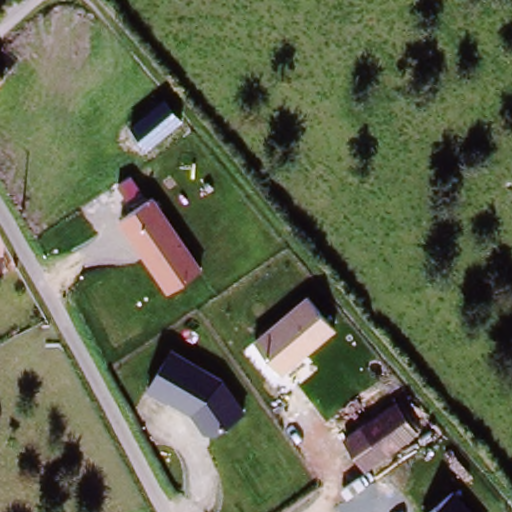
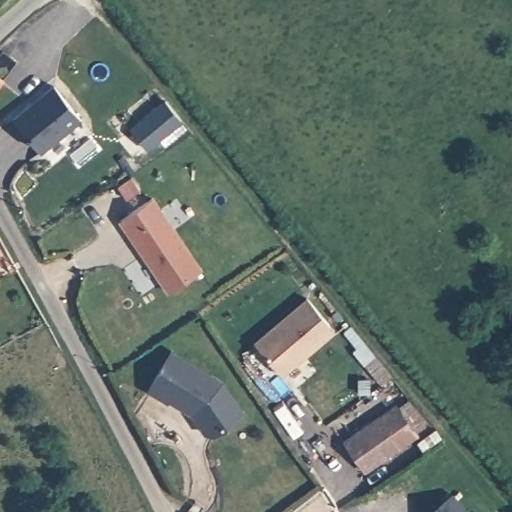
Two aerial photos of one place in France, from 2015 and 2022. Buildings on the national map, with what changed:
unchanged [(0,86),(0,74),(5,79),(0,86)]
new [(42,157),(15,123),(57,90),(85,125),(42,157)]
unchanged [(164,100),(184,122),(149,149),(131,123),(164,100)]
unchanged [(155,198),(202,271),(167,293),(120,219),(155,198)]
unchanged [(307,297),(335,332),(282,374),(255,339),(307,297)]
unchanged [(227,379),(248,411),(207,435),(192,411),(149,388),(170,346),(227,379)]
unchanged [(397,403),(418,436),(364,472),(344,438),(397,403)]
unchanged [(468,512),(432,512),(453,496),(468,512)]

